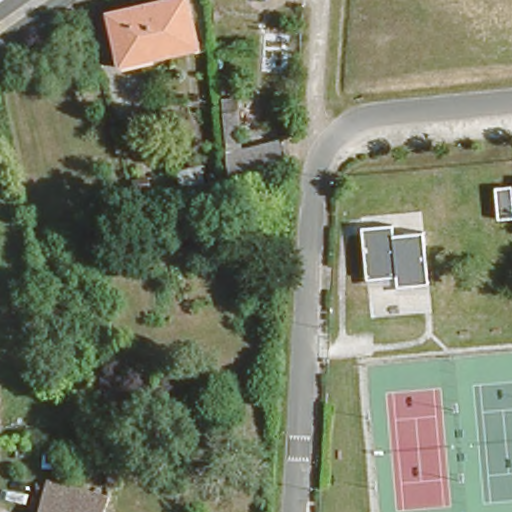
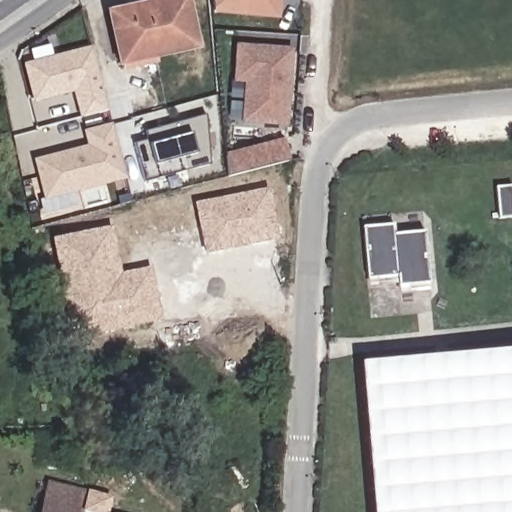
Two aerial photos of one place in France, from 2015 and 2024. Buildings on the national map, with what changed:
unchanged [(112,8),(145,0),(193,0),(200,32),(162,39),(165,49),(146,53),(121,58),(118,39),(112,8)]
new [(212,0),(279,0),(277,16),(213,10),(212,0)]
new [(118,39),(120,45),(121,58),(146,53),(165,49),(162,39),(197,33),(201,49),(156,59),(157,64),(122,72),(120,66),(118,67),(105,10),(112,8),(118,39)]
new [(22,64),(34,62),(30,50),(50,44),(54,56),(92,47),(107,111),(81,120),(74,93),(32,104),(22,64)]
new [(286,126),(240,123),(243,84),(232,83),(235,44),(292,48),(286,126)]
demolished [(240,96),(240,146),(282,139),(285,164),(225,173),(220,97),(240,96)]
new [(210,153),(212,164),(145,181),(135,144),(147,141),(145,131),(205,116),(213,152),(210,153)]
new [(83,130),(114,122),(129,179),(44,202),(32,159),(86,145),(83,130)]
new [(287,166),(229,182),(226,156),(281,141),(287,166)]
demolished [(137,197),(135,185),(150,184),(151,194),(137,197)]
new [(512,187),(512,219),(498,220),(496,188),(512,187)]
new [(269,188),(280,239),(205,254),(194,203),(269,188)]
unchanged [(423,259),(425,283),(387,288),(384,275),(366,277),(365,251),(384,248),(382,225),(431,219),(434,255),(423,259)]
new [(111,226),(120,273),(150,267),(162,320),(70,337),(52,238),(111,226)]
new [(365,366),(512,356),(512,512),(376,512),(365,366)]
unchanged [(47,480),(81,488),(76,512),(39,512),(47,480)]
unchanged [(109,494),(105,509),(118,512),(76,512),(81,488),(109,494)]

